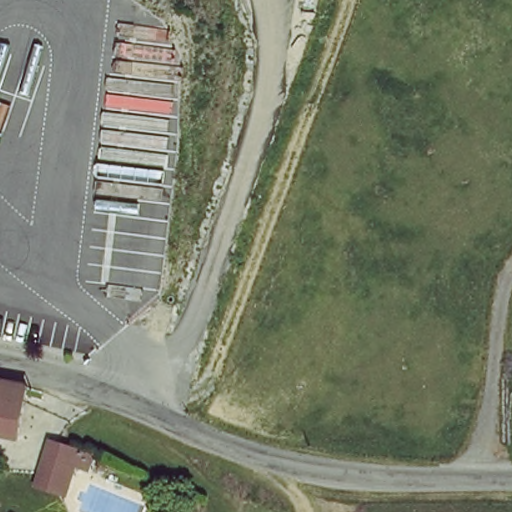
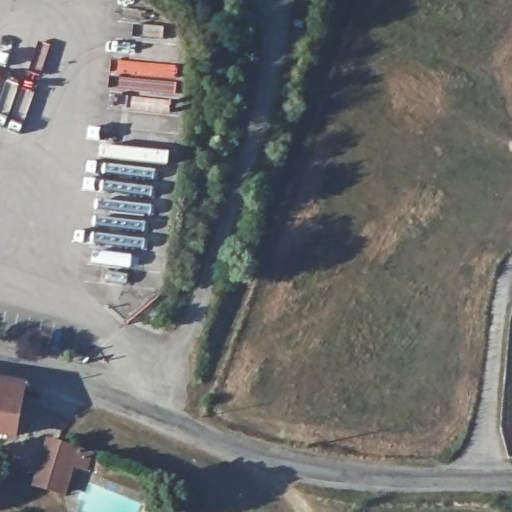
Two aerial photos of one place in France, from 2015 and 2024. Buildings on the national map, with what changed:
unchanged [(18,429),(0,426),(0,376),(25,380),(18,429)]
unchanged [(81,447),(63,506),(34,497),(49,440),(81,447)]

